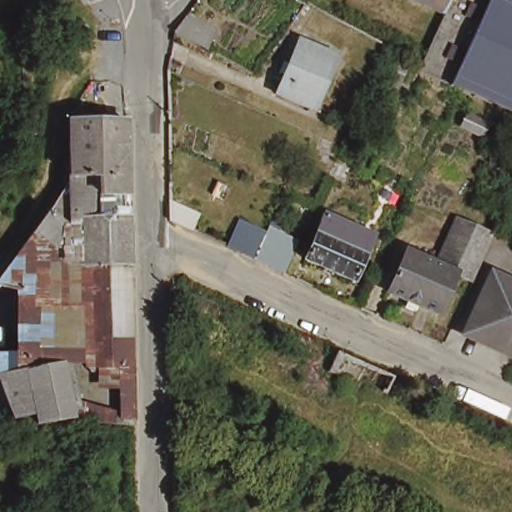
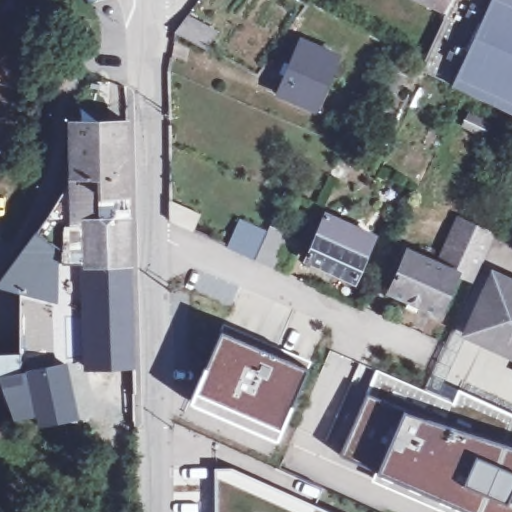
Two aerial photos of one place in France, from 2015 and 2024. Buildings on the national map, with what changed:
unchanged [(452,2),(447,0),(512,0),(512,112),(421,71),(452,2)]
unchanged [(193,22),(222,38),(210,53),(181,37),(193,22)]
unchanged [(91,28),(92,48),(80,49),(78,29),(91,28)]
unchanged [(337,55),(313,110),(278,93),(303,40),(337,55)]
unchanged [(18,347),(18,290),(0,286),(0,281),(65,201),(62,120),(130,115),(140,345),(135,432),(86,418),(42,427),(39,417),(20,421),(0,373),(0,352),(18,347)]
unchanged [(200,216),(194,232),(170,222),(169,201),(200,216)]
unchanged [(373,234),(354,278),(306,258),(325,213),(373,234)]
unchanged [(286,274),(270,267),(256,261),(227,247),(242,217),(270,230),(271,227),(285,234),(301,241),(286,274)]
unchanged [(480,281),(462,273),(443,316),(393,294),(413,251),(442,263),(462,219),(500,235),(480,281)]
unchanged [(512,282),(512,353),(475,337),(502,277),(512,282)]
new [(276,438),(191,402),(222,332),(306,368),(276,438)]
demolished [(340,349),(397,375),(384,400),(330,376),(340,349)]
new [(475,512),(447,512),(372,480),(377,470),(342,456),(368,394),(378,370),(455,403),(460,391),(512,415),(512,512),(477,512),(475,512)]
new [(214,501),(215,470),(231,468),(328,512),(213,512),(214,501)]

